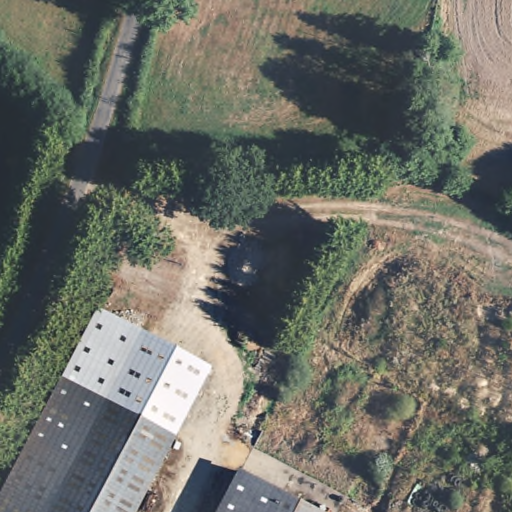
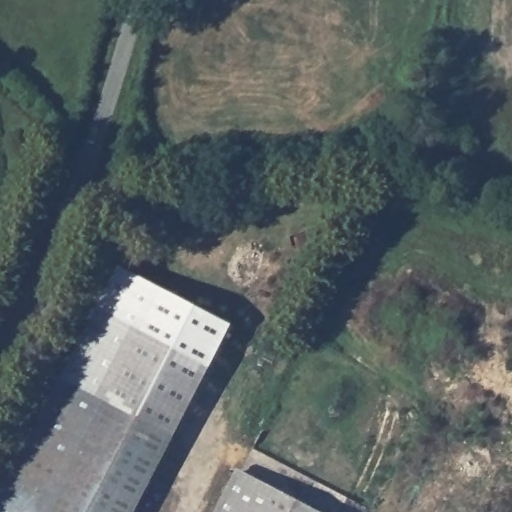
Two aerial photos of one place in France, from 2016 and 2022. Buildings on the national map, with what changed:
new [(124,267),(235,326),(213,369),(141,332),(101,309),(124,267)]
unchanged [(64,385),(101,309),(141,332),(213,369),(177,444),(64,385)]
unchanged [(140,512),(0,512),(0,504),(64,385),(177,444),(140,512)]
unchanged [(302,512),(220,512),(238,478),(302,512)]

